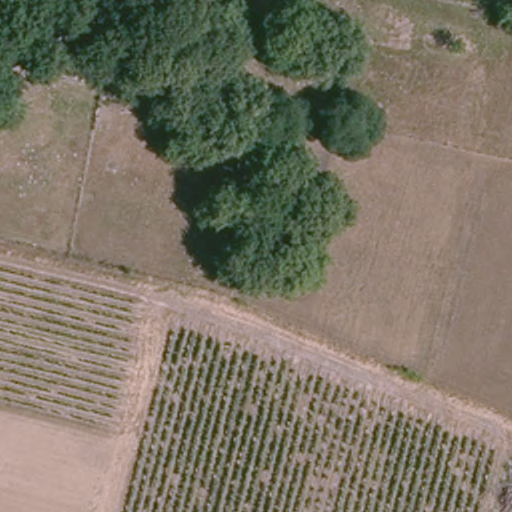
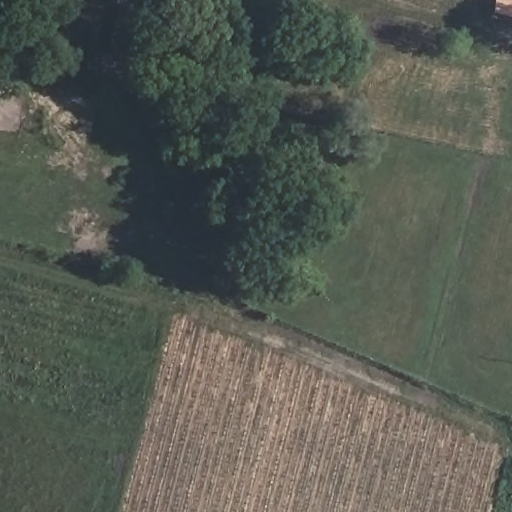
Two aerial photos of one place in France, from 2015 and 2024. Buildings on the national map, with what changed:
new [(493,15),(495,0),(512,0),(512,17),(493,15)]

